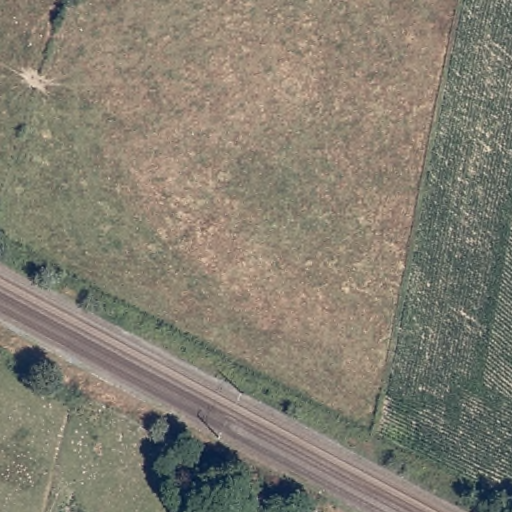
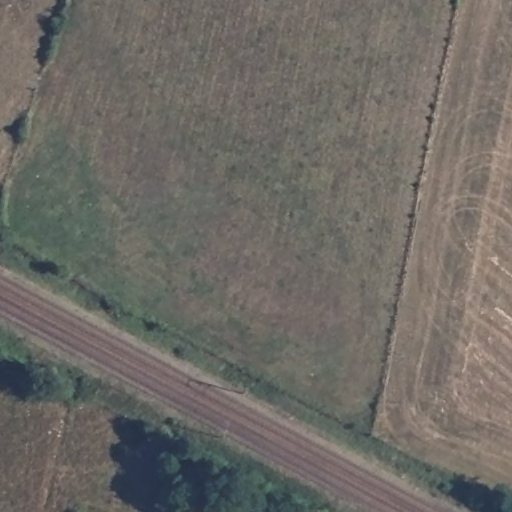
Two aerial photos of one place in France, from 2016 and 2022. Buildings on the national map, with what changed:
unchanged [(316,512),(293,512),(316,511),(316,512)]

